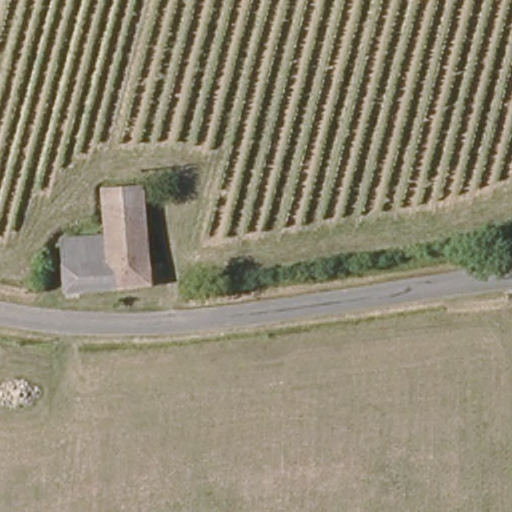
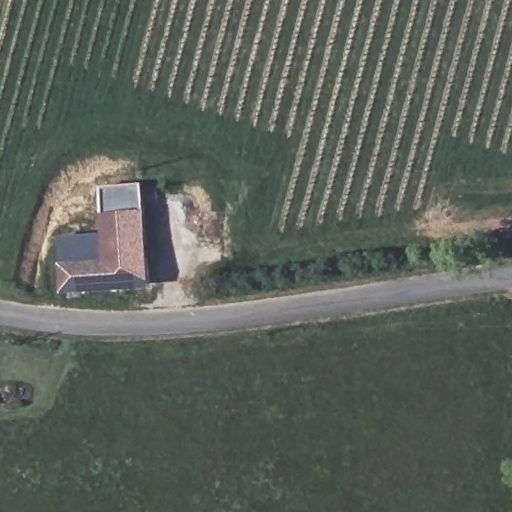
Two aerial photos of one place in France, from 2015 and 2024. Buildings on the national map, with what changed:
unchanged [(64,291),(61,258),(60,238),(106,233),(103,187),(141,183),(151,259),(153,295),(64,291)]

